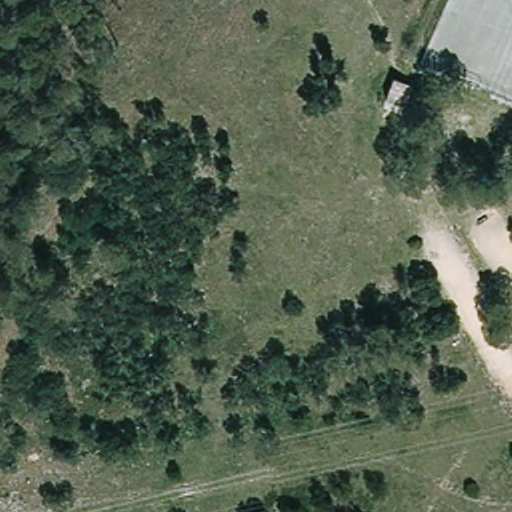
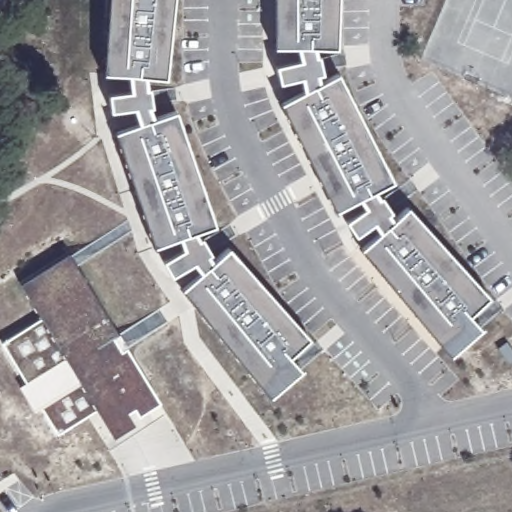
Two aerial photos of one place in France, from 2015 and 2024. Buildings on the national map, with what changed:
new [(145,77),(145,87),(148,86),(152,106),(149,107),(152,117),(137,123),(133,108),(109,111),(107,93),(130,90),(127,74),(102,73),(106,0),(173,0),(165,78),(145,77)]
new [(312,46),(312,55),(317,55),(320,73),(315,73),(316,83),(337,73),(391,180),(372,191),(377,198),(380,196),(390,209),(386,213),(391,220),(407,207),(487,295),(467,314),(480,327),(448,354),(359,249),(380,231),(373,222),(355,235),(345,220),(363,207),(358,198),(333,212),(278,102),(302,90),(300,78),(277,82),(275,64),(298,59),(297,47),(272,46),(272,0),(337,0),(335,46),(312,46)]
demolished [(395,75),(417,82),(409,105),(390,98),(395,75)]
new [(174,110),(213,224),(193,232),(210,263),(228,248),(307,337),(288,355),(300,368),(268,396),(180,288),(201,271),(193,261),(170,275),(163,259),(183,248),(180,236),(152,246),(113,131),(174,110)]
new [(67,253),(159,402),(137,415),(133,407),(125,412),(132,423),(111,435),(96,410),(57,434),(40,407),(34,411),(18,385),(25,381),(2,342),(40,318),(18,282),(67,253)]

